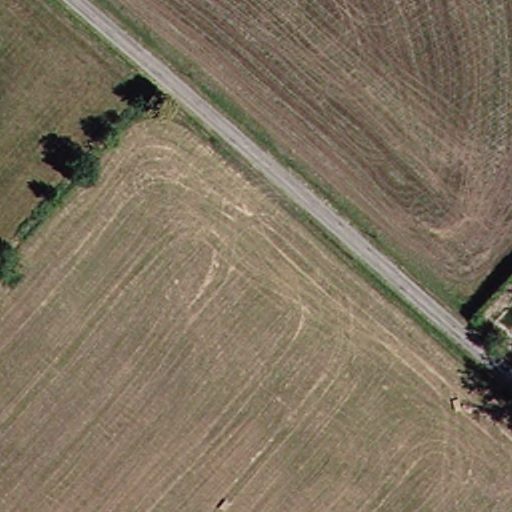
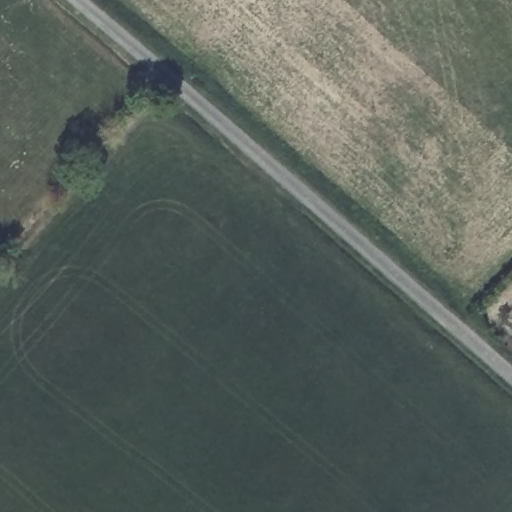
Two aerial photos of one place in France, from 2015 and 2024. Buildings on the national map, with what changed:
[]

